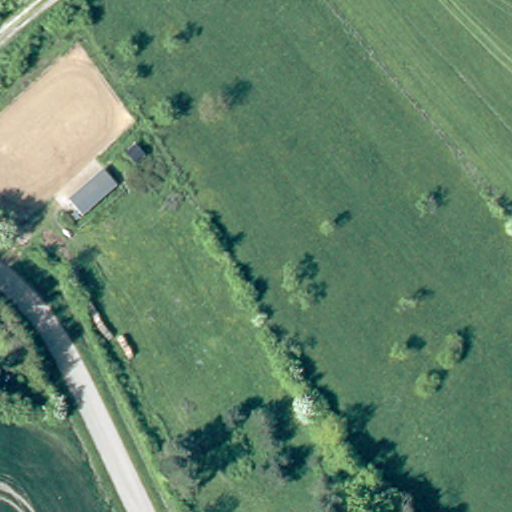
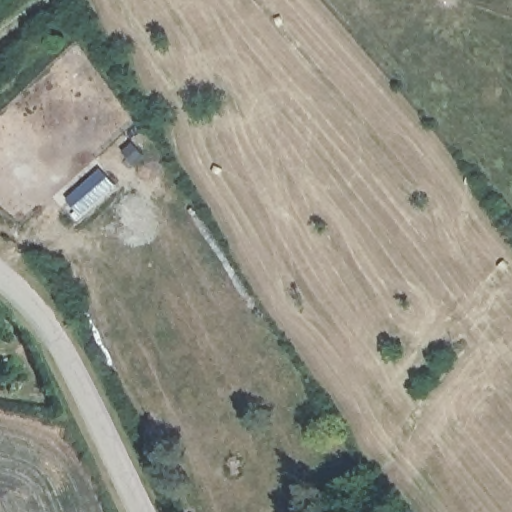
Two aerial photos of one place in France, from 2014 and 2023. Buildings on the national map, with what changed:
unchanged [(138,145),(147,155),(137,164),(128,154),(138,145)]
unchanged [(114,184),(80,215),(68,203),(103,172),(114,184)]

